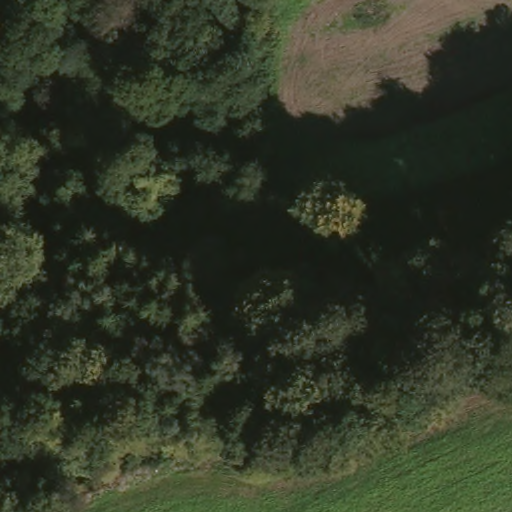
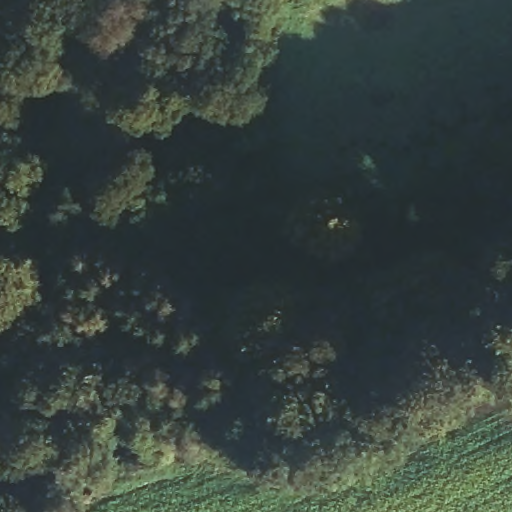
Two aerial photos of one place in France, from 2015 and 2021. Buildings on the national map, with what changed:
[]

